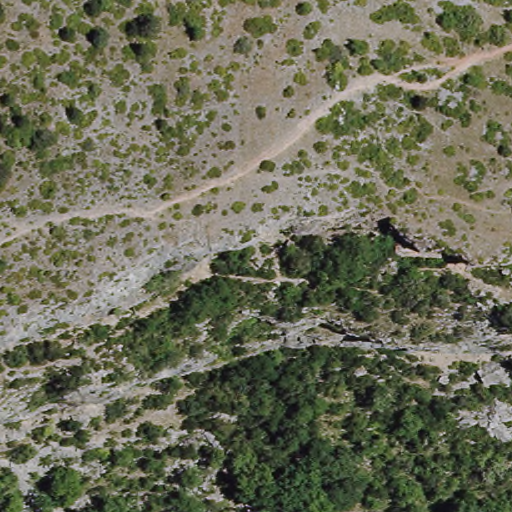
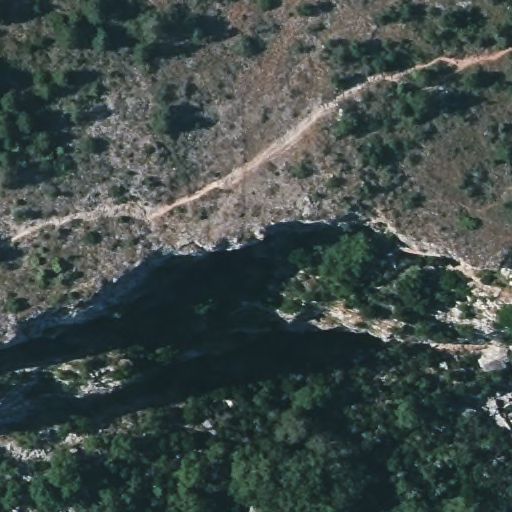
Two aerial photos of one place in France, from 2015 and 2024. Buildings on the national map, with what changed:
unchanged [(479,304),(415,286),(423,263),(484,281),(479,304)]

